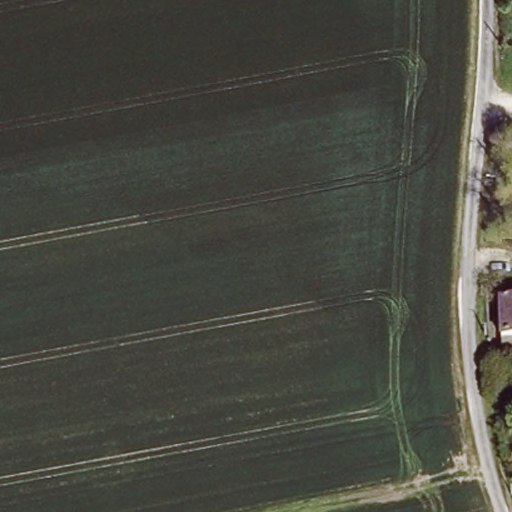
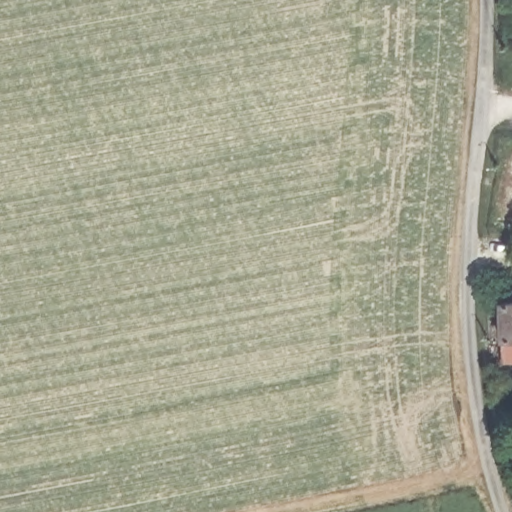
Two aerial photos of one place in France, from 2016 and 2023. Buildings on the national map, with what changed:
unchanged [(512,361),(502,361),(502,299),(512,299),(512,361)]

